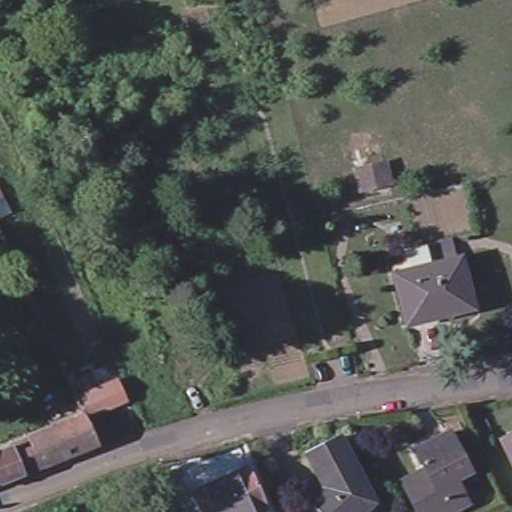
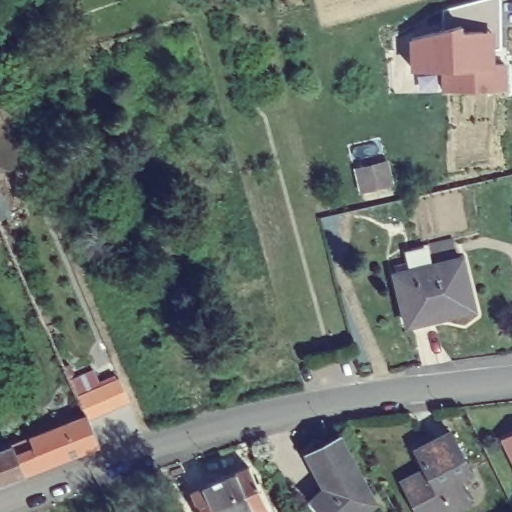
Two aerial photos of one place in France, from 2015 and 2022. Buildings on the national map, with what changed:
new [(501,47),(494,49),(495,64),(507,63),(508,89),(443,92),(441,70),(410,71),(409,39),(443,29),(443,9),(476,0),(500,0),(501,47)]
unchanged [(391,183),(362,190),(357,170),(386,164),(391,183)]
unchanged [(174,252),(154,260),(146,240),(166,232),(174,252)]
unchanged [(473,308),(408,325),(395,275),(461,259),(473,308)]
unchanged [(0,492),(0,458),(16,452),(20,461),(37,453),(34,444),(91,421),(105,451),(0,492)]
unchanged [(455,432),(475,472),(461,479),(473,503),(456,512),(433,512),(426,499),(418,504),(407,482),(424,473),(427,478),(434,475),(421,450),(455,432)]
unchanged [(512,435),(512,458),(503,439),(512,435)]
unchanged [(350,442),(381,501),(368,512),(327,512),(321,506),(335,493),(317,460),(350,442)]
unchanged [(249,467),(267,508),(269,512),(199,512),(190,494),(249,467)]

